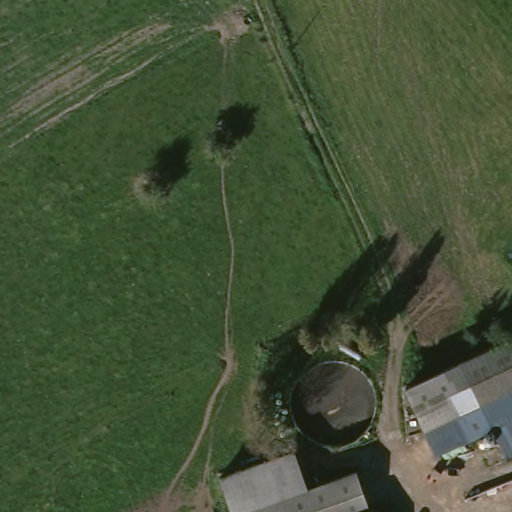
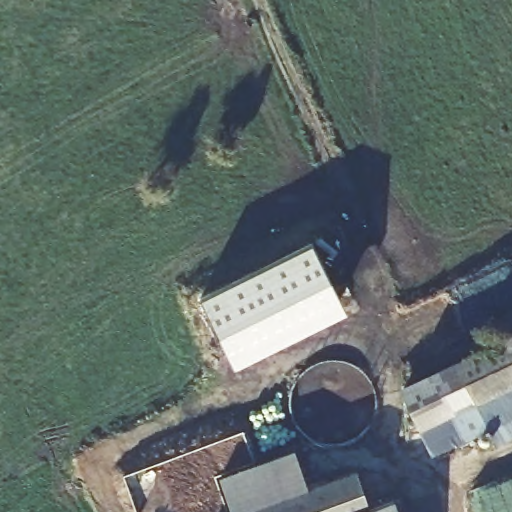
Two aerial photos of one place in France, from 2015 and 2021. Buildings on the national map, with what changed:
new [(309,245),(337,300),(225,358),(197,303),(309,245)]
new [(337,300),(347,320),(235,377),(225,358),(337,300)]
unchanged [(512,338),(512,456),(498,425),(442,455),(412,380),(512,338)]
unchanged [(226,473),(297,449),(305,484),(367,468),(381,512),(241,512),(226,473)]

